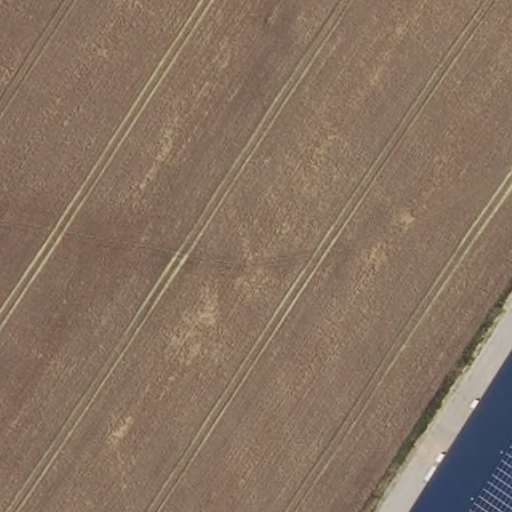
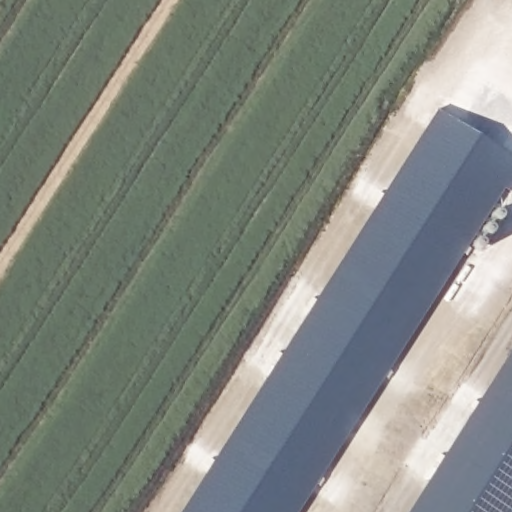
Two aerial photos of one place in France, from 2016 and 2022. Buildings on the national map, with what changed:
new [(299,512),(182,512),(437,110),(512,156),(512,192),(511,193),(505,188),(299,512)]
unchanged [(512,512),(410,512),(512,352),(512,512)]

